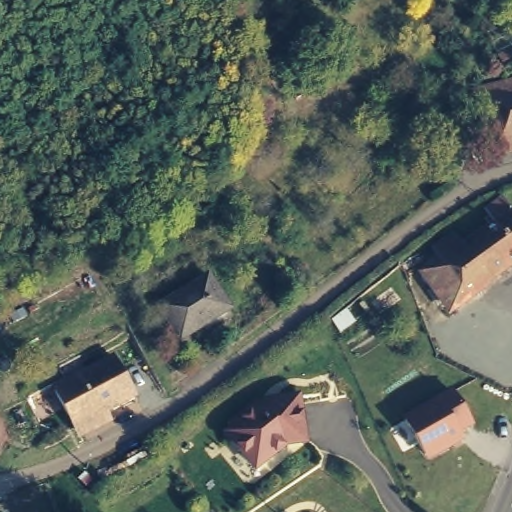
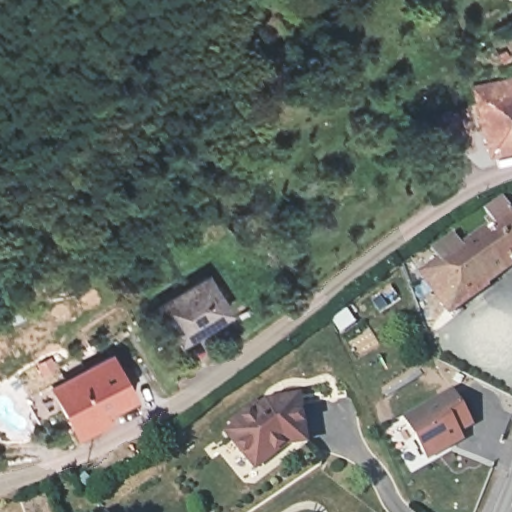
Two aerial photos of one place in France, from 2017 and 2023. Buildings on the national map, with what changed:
unchanged [(477,91),(512,83),(512,155),(494,159),(477,91)]
unchanged [(421,260),(440,248),(432,234),(457,219),(465,230),(493,208),(485,198),(505,185),(512,197),(512,262),(450,307),(421,260)]
unchanged [(232,306),(185,339),(160,302),(206,269),(232,306)]
unchanged [(76,432),(52,384),(112,351),(133,393),(106,406),(111,414),(76,432)]
unchanged [(402,416),(454,387),(476,423),(459,433),(464,442),(428,462),(402,416)]
unchanged [(288,448),(258,474),(227,434),(233,429),(233,418),(247,407),(250,411),(267,397),(305,394),(310,446),(288,448)]

